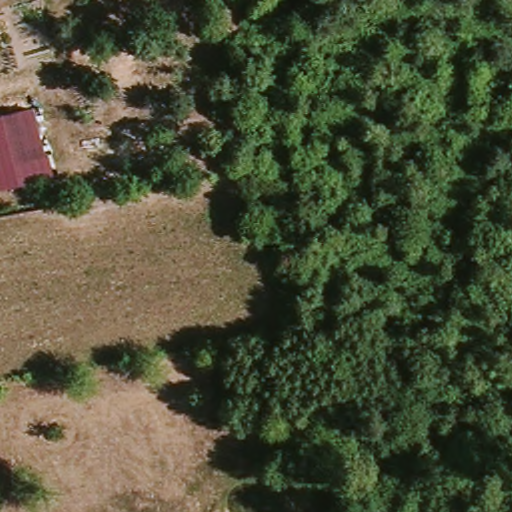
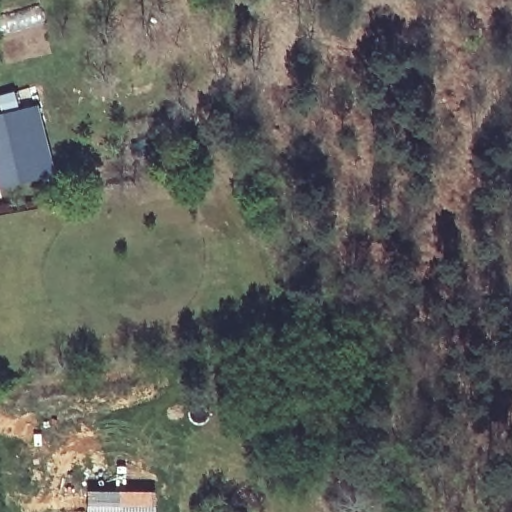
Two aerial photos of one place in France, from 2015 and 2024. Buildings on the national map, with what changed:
unchanged [(55,174),(0,187),(0,114),(36,105),(55,174)]
new [(155,491),(155,512),(86,512),(86,490),(155,491)]

